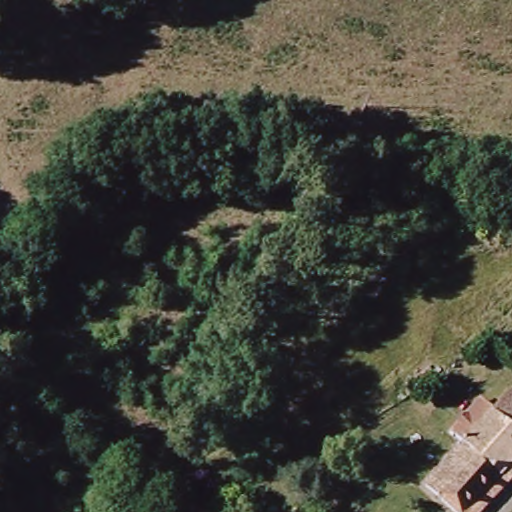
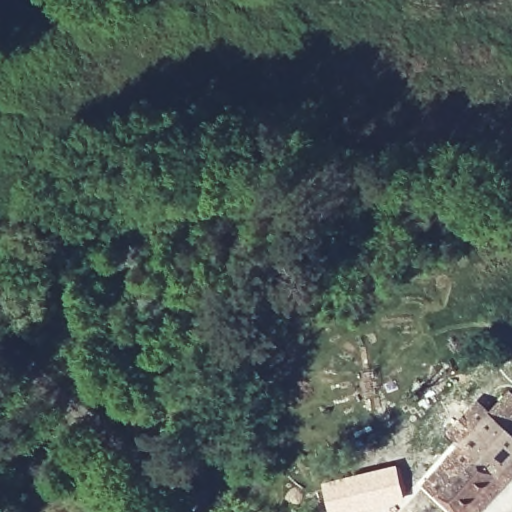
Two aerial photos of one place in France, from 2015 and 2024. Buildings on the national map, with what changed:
unchanged [(419,480),(461,435),(452,427),(478,399),(487,408),(506,389),(512,394),(512,451),(454,512),(453,512),(419,480)]
new [(396,465),(404,502),(372,512),(329,512),(322,481),(396,465)]

